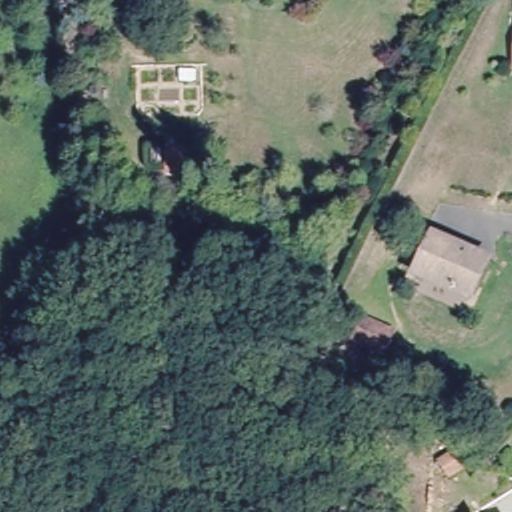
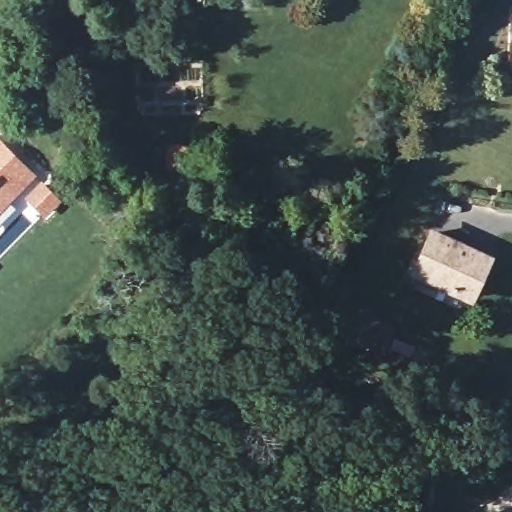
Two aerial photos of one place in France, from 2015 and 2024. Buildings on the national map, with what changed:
new [(61,200),(44,218),(29,206),(0,232),(0,140),(38,178),(61,200)]
unchanged [(188,144),(189,176),(169,173),(171,143),(188,144)]
unchanged [(486,258),(468,296),(412,269),(431,231),(486,258)]
unchanged [(392,330),(381,353),(350,338),(361,315),(392,330)]
unchanged [(462,452),(469,465),(452,474),(445,461),(462,452)]

